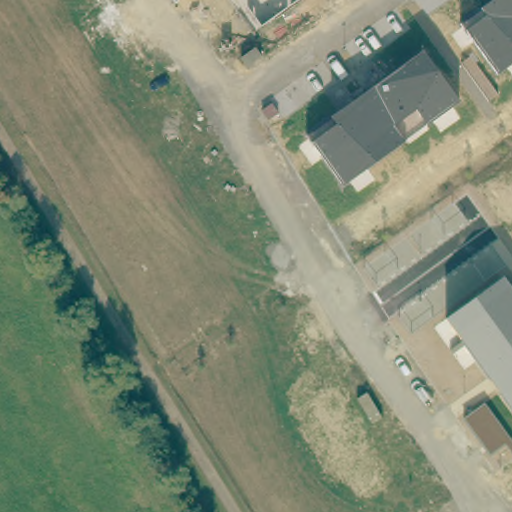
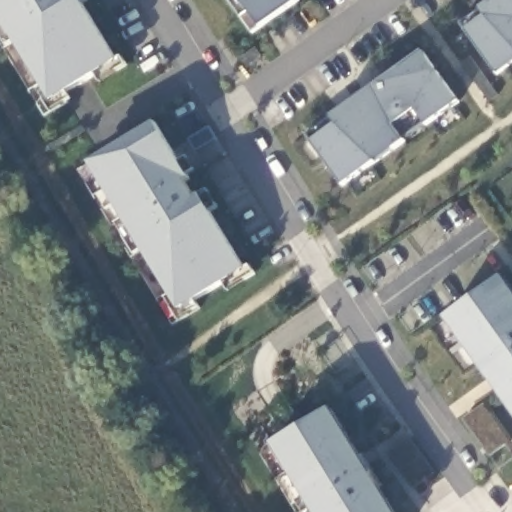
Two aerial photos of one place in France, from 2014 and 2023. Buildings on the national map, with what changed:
new [(123,60),(127,66),(54,110),(45,117),(0,44),(0,0),(80,0),(119,61),(123,60)]
unchanged [(273,19),(252,34),(228,0),(299,0),(300,1),(276,21),(273,19)]
unchanged [(462,23),(481,8),(492,0),(512,0),(512,63),(498,73),(467,29),(462,23)]
unchanged [(312,142),(307,135),(334,116),(424,50),(459,100),(343,185),(312,142)]
new [(155,125),(162,135),(191,180),(187,183),(196,197),(200,195),(207,207),(245,271),(251,269),(255,276),(182,319),(173,325),(80,170),(91,163),(155,125)]
unchanged [(502,276),(512,289),(512,411),(448,317),(502,276)]
new [(331,410),(395,512),(314,512),(272,443),(331,410)]

